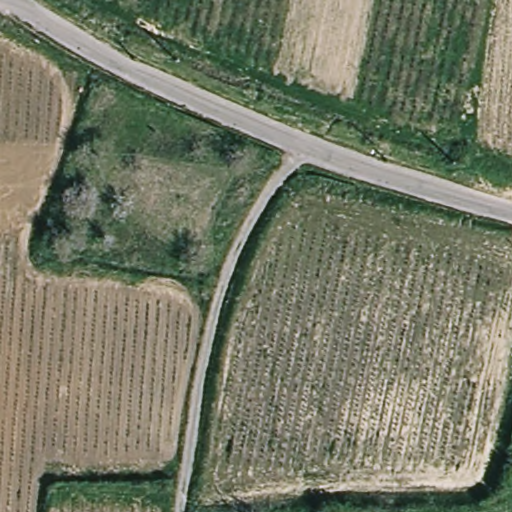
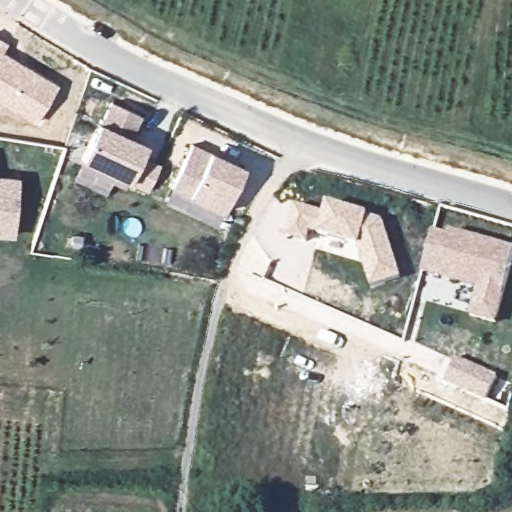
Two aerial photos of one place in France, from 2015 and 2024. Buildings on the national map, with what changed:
new [(57,85),(35,124),(0,104),(0,39),(7,44),(1,52),(57,85)]
new [(140,155),(157,165),(145,191),(126,183),(78,163),(98,122),(110,102),(140,116),(130,137),(145,144),(140,155)]
new [(210,152),(243,167),(222,212),(187,196),(172,187),(188,143),(210,152)]
new [(17,178),(11,236),(0,236),(0,177),(17,178)]
new [(370,286),(356,248),(318,236),(310,234),(307,244),(286,238),(295,205),(325,216),(328,205),(370,217),(384,222),(400,278),(370,286)]
new [(434,233),(448,237),(450,230),(512,249),(512,264),(496,324),(468,316),(475,290),(422,275),(434,233)]
new [(497,376),(485,399),(445,382),(455,357),(497,376)]

